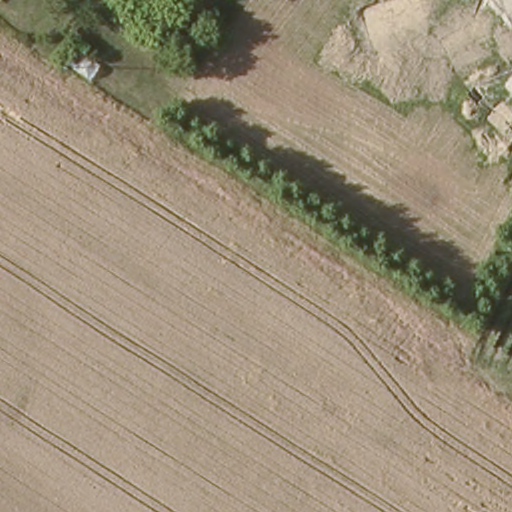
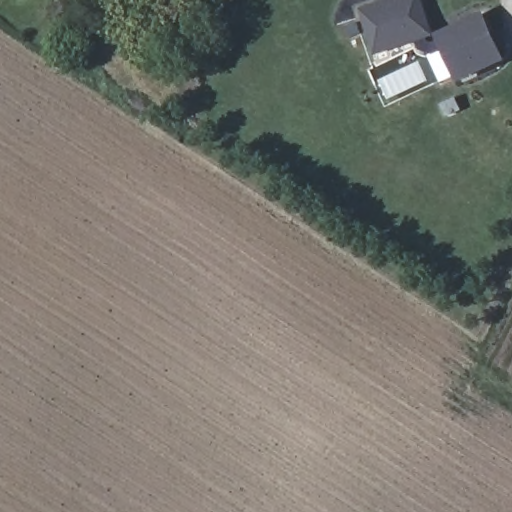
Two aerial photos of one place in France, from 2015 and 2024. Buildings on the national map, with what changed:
new [(502,50),(506,61),(458,84),(444,53),(436,56),(420,51),(418,42),(374,57),(359,10),(389,0),(422,0),(435,35),(485,12),(494,34),(503,31),(509,47),(502,50)]

